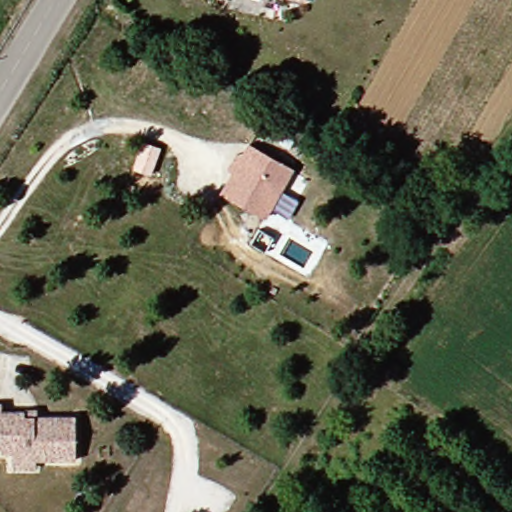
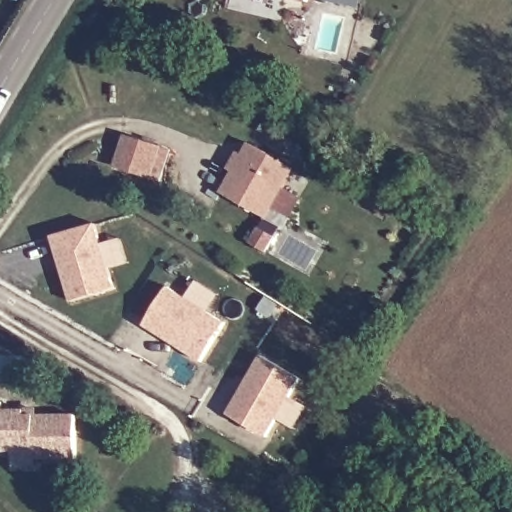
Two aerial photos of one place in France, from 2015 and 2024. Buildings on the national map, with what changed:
new [(149,180),(114,167),(126,137),(160,150),(149,180)]
unchanged [(295,164),(267,215),(224,189),(236,167),(231,163),(240,150),(244,152),(252,140),(295,164)]
new [(101,247),(121,242),(128,268),(107,273),(113,296),(67,307),(49,240),(95,227),(101,247)]
new [(199,363),(142,327),(166,290),(185,301),(195,285),(218,299),(208,315),(223,325),(199,363)]
new [(289,402),(306,411),(293,434),(276,425),(268,441),(226,417),(258,360),(299,383),(289,402)]
unchanged [(17,462),(17,446),(4,446),(4,438),(0,438),(0,397),(4,397),(4,404),(26,403),(38,404),(37,410),(80,410),(79,453),(37,454),(37,462),(17,462)]

